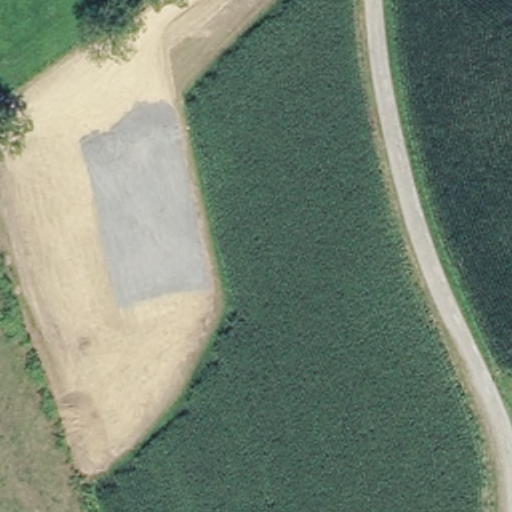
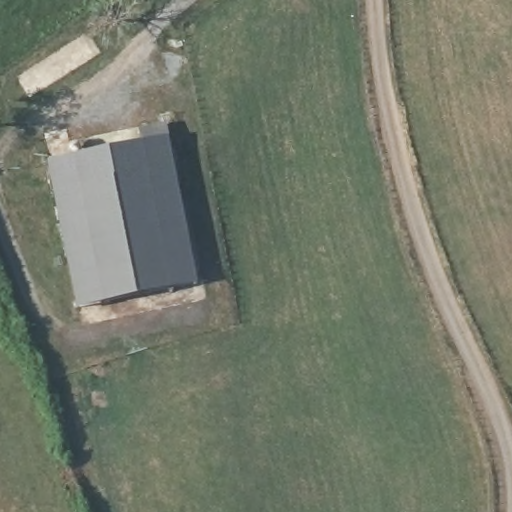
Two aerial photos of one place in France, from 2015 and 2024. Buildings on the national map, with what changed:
new [(75,307),(45,160),(166,134),(194,281),(75,307)]

